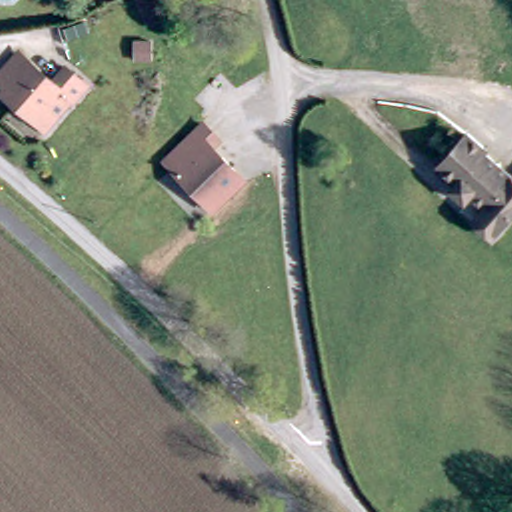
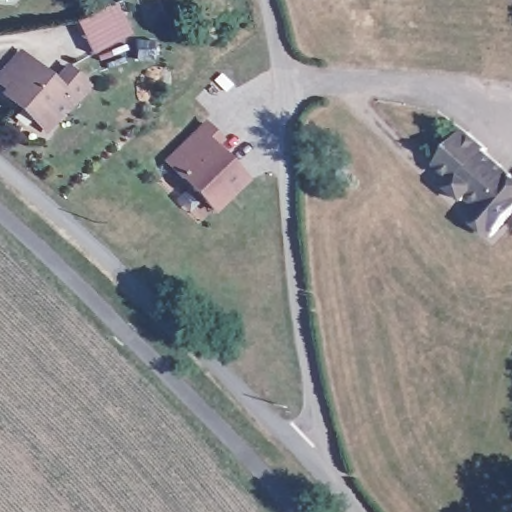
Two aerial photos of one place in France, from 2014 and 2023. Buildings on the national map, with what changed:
new [(116,2),(131,32),(91,53),(76,22),(116,2)]
unchanged [(34,114),(4,87),(14,76),(3,65),(21,47),(31,57),(53,77),(67,62),(89,82),(74,98),(69,97),(54,114),(46,124),(34,114)]
unchanged [(219,137),(213,142),(245,177),(212,208),(167,157),(205,122),(219,137)]
unchanged [(512,165),(512,206),(479,239),(461,222),(476,206),(459,190),(451,199),(436,185),(443,178),(426,163),(459,131),(503,175),(512,165)]

